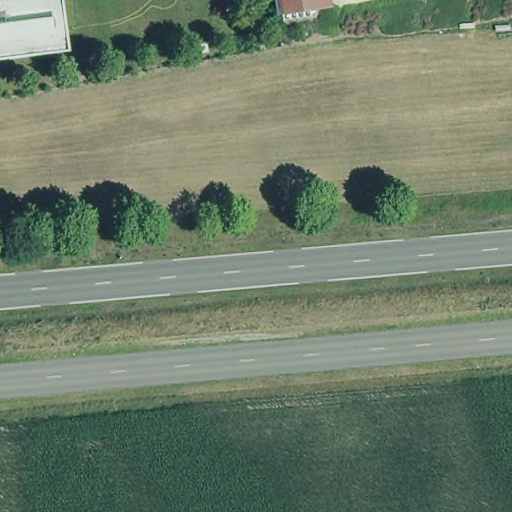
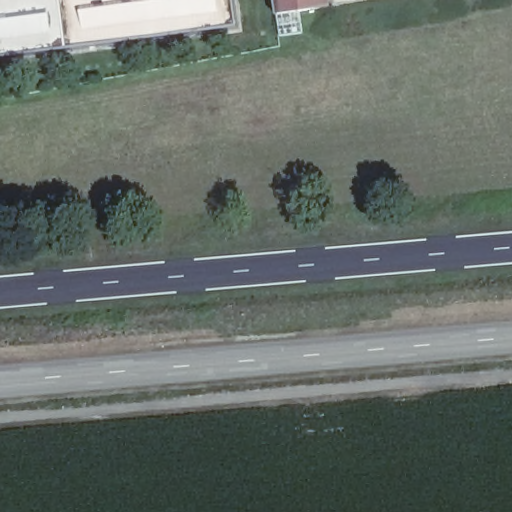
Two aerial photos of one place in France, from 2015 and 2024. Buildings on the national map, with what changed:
unchanged [(69,51),(0,60),(0,0),(62,0),(69,51)]
new [(62,0),(234,0),(238,28),(69,51),(62,0)]
unchanged [(280,0),(330,0),(332,11),(283,18),(280,0)]

